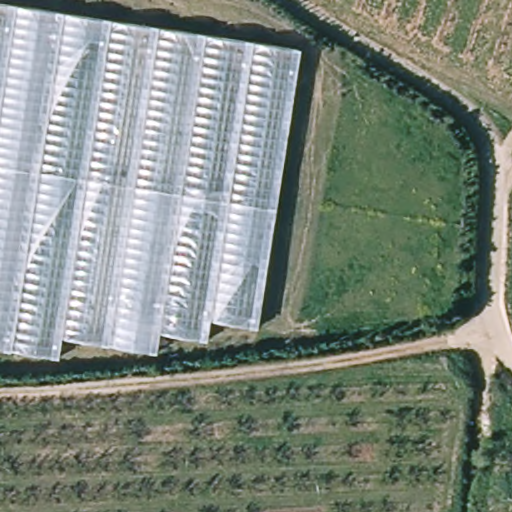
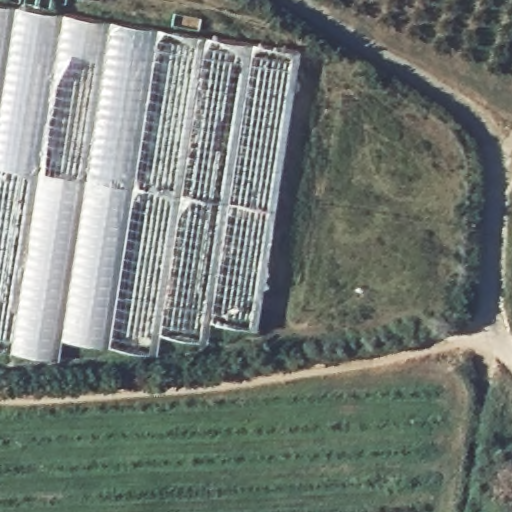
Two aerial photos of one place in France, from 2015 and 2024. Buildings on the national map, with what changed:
unchanged [(254,328),(151,354),(59,339),(54,358),(0,350),(0,5),(297,49),(254,328)]

